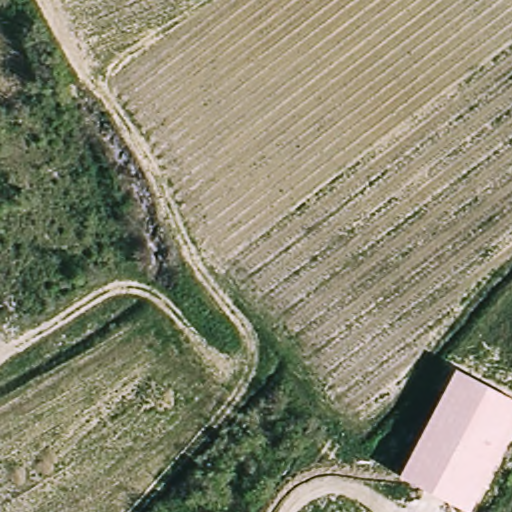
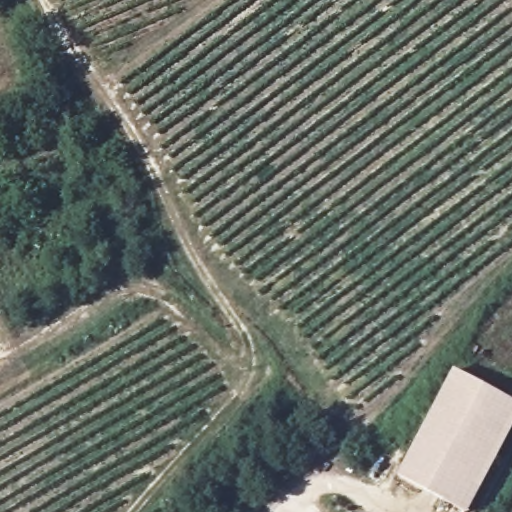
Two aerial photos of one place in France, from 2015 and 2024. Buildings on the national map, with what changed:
unchanged [(512,398),(512,435),(472,512),(466,512),(400,476),(456,369),(512,398)]

